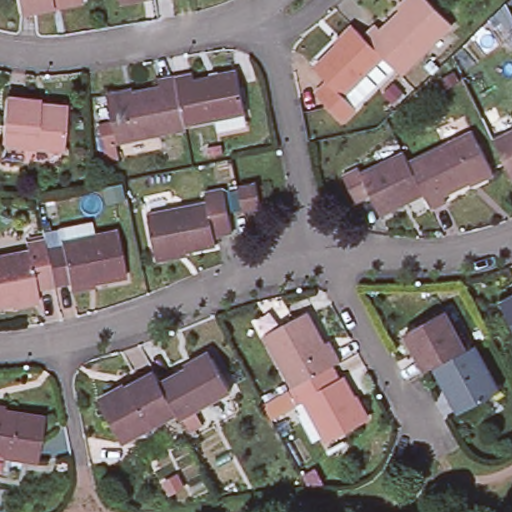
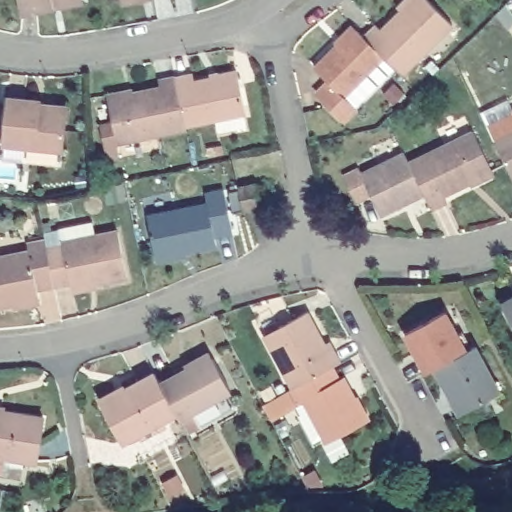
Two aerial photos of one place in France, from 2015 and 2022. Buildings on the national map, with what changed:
unchanged [(20,14),(18,0),(83,0),(83,2),(53,8),(20,14)]
unchanged [(122,0),(134,0),(122,2),(122,0)]
unchanged [(401,7),(398,4),(402,0),(433,0),(452,19),(401,70),(383,51),(365,33),(377,21),(382,26),(401,7)]
unchanged [(343,91),(355,103),(342,116),(317,91),(330,79),(315,63),(337,41),(335,39),(352,21),(357,25),(365,33),(383,51),(343,91)]
unchanged [(425,66),(432,60),(438,68),(432,73),(425,66)]
unchanged [(220,114),(190,120),(180,73),(197,70),(199,77),(242,68),(250,108),(252,120),(222,126),(220,114)]
unchanged [(441,79),(454,72),(460,82),(446,89),(441,79)]
unchanged [(112,93),(112,89),(137,84),(137,88),(165,83),(163,76),(180,73),(190,120),(190,124),(121,138),(125,153),(112,156),(105,121),(117,118),(112,93)]
unchanged [(12,88),(45,91),(45,94),(72,97),(71,103),(66,155),(7,149),(8,134),(7,134),(12,88)]
unchanged [(443,191),(447,197),(432,204),(424,189),(408,157),(472,126),(492,167),(494,170),(470,181),(469,178),(443,191)]
unchanged [(512,126),(512,173),(493,135),(512,126)]
unchanged [(208,156),(207,148),(222,145),(223,153),(208,156)]
unchanged [(358,163),(361,169),(404,148),(408,157),(424,189),(380,210),(370,190),(356,197),(343,170),(358,163)]
unchanged [(238,187),(256,183),(260,203),(261,207),(243,210),(242,207),(238,187)]
unchanged [(161,256),(160,250),(152,210),(212,198),(210,189),(229,185),(237,227),(220,231),(221,240),(191,246),(192,250),(161,256)]
unchanged [(72,291),(71,286),(70,282),(54,285),(45,240),(43,233),(59,230),(59,228),(92,221),(95,236),(117,231),(127,277),(95,283),(95,286),(72,291)]
unchanged [(14,303),(0,306),(0,257),(28,251),(27,244),(45,240),(54,285),(37,289),(38,296),(40,302),(15,307),(14,303)]
unchanged [(505,303),(512,299),(512,315),(505,303)]
unchanged [(268,331),(312,307),(330,339),(335,337),(345,357),(337,362),(297,383),(268,331)]
unchanged [(405,333),(445,312),(465,351),(432,369),(426,372),(405,333)]
unchanged [(500,391),(459,414),(458,414),(449,395),(447,397),(432,369),(465,351),(475,345),(500,391)]
unchanged [(188,369),(189,371),(212,358),(230,391),(193,412),(201,426),(187,434),(177,414),(160,384),(188,369)]
unchanged [(267,400),(292,386),(297,383),(337,362),(344,376),(348,374),(370,415),(331,437),(308,396),(300,400),(275,414),(267,400)]
unchanged [(124,389),(155,373),(160,384),(177,414),(123,443),(102,404),(125,392),(124,389)]
unchanged [(287,381),(279,385),(277,380),(285,376),(287,381)]
unchanged [(278,386),(270,389),(267,384),(275,380),(278,386)]
unchanged [(282,411),(292,407),(298,420),(290,424),(282,411)]
unchanged [(0,473),(0,408),(3,408),(2,411),(43,418),(36,462),(11,458),(8,474),(2,473),(0,473)]
unchanged [(6,512),(0,512),(0,490),(10,491),(6,512)]

